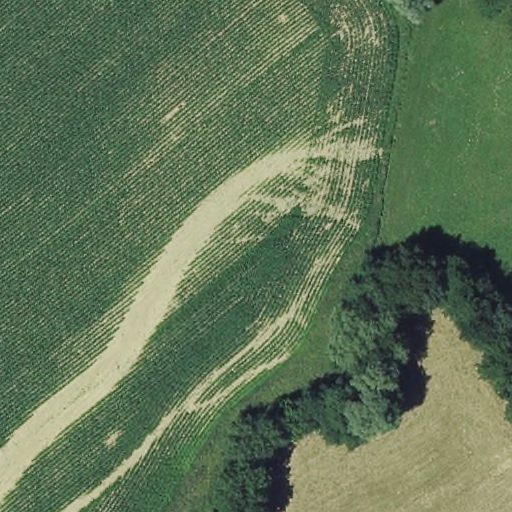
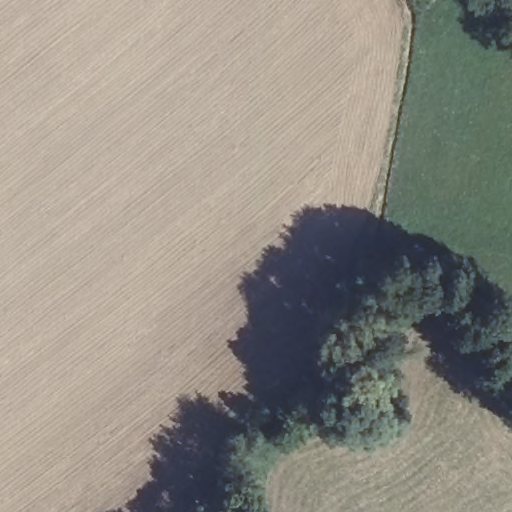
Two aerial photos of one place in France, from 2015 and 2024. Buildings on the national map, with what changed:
[]

